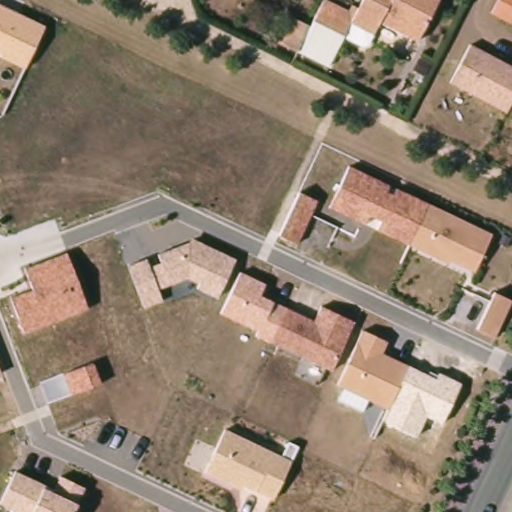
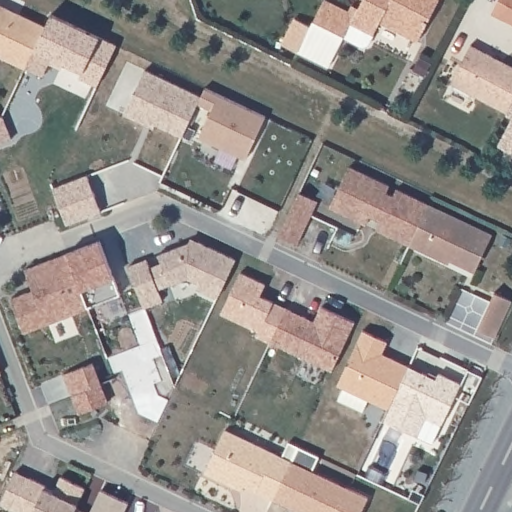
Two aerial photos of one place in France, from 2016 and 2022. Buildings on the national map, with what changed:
unchanged [(379,21),(364,48),(341,38),(326,66),(281,43),(293,20),(308,28),(325,0),(334,0),(354,12),(361,0),(436,0),(416,41),(379,21)]
unchanged [(494,0),(512,0),(512,21),(489,10),(494,0)]
unchanged [(47,28),(25,69),(0,56),(0,5),(47,28)]
new [(51,19),(117,48),(98,89),(79,81),(82,76),(33,53),(47,28),(51,19)]
unchanged [(512,107),(511,110),(509,113),(452,85),(471,46),(512,67),(512,107)]
new [(146,71),(201,95),(204,87),(267,116),(245,158),(199,137),(211,111),(197,105),(182,138),(154,124),(152,128),(125,115),(146,71)]
new [(512,107),(512,115),(509,113),(512,107)]
new [(2,118),(11,141),(0,145),(0,118),(2,118)]
new [(512,118),(512,152),(498,145),(512,118)]
unchanged [(330,206),(349,167),(428,205),(408,244),(330,206)]
unchanged [(318,203),(298,248),(278,237),(299,193),(318,203)]
unchanged [(474,270),(408,244),(428,205),(492,233),(474,270)]
unchanged [(196,289),(198,283),(188,278),(157,289),(162,301),(143,307),(127,265),(146,258),(150,267),(161,263),(156,254),(189,245),(192,237),(237,262),(217,299),(196,289)]
unchanged [(33,291),(24,270),(68,254),(88,309),(24,333),(11,298),(33,291)]
unchanged [(330,370),(254,336),(257,330),(221,313),(241,272),(264,284),(259,294),(316,320),(323,306),(354,318),(330,370)]
unchanged [(494,336),(475,329),(493,290),(512,299),(494,336)]
unchanged [(386,410),(336,387),(362,332),(389,344),(383,353),(409,365),(386,410)]
new [(79,417),(71,397),(63,376),(92,364),(100,385),(108,405),(79,417)]
unchanged [(383,420),(411,366),(438,378),(440,372),(462,384),(443,425),(425,417),(418,436),(383,420)]
unchanged [(273,500),(244,487),(242,490),(204,472),(225,428),(291,458),(273,500)]
new [(291,458),(370,498),(362,512),(299,512),(273,500),(291,458)]
unchanged [(13,472),(55,489),(61,474),(86,486),(75,512),(15,512),(1,506),(13,472)]
new [(102,489),(129,502),(123,512),(90,512),(102,489)]
new [(77,507),(87,512),(75,512),(77,507)]

